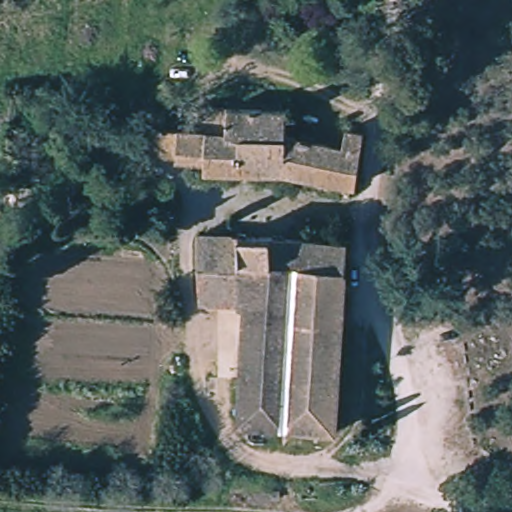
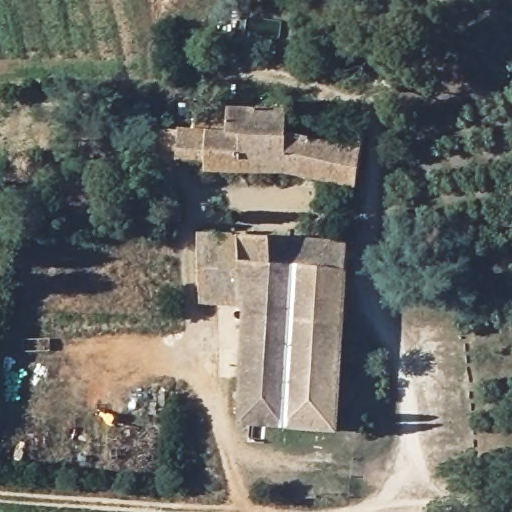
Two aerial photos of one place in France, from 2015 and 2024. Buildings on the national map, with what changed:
unchanged [(360,186),(284,175),(200,170),(200,162),(134,159),(137,125),(230,130),(231,103),(292,104),(293,133),(346,141),(350,128),(367,130),(360,186)]
unchanged [(245,422),(232,304),(189,302),(189,232),(259,235),(260,228),(269,228),(269,236),(320,238),(320,227),(343,229),(343,224),(350,225),(342,430),(245,422)]

